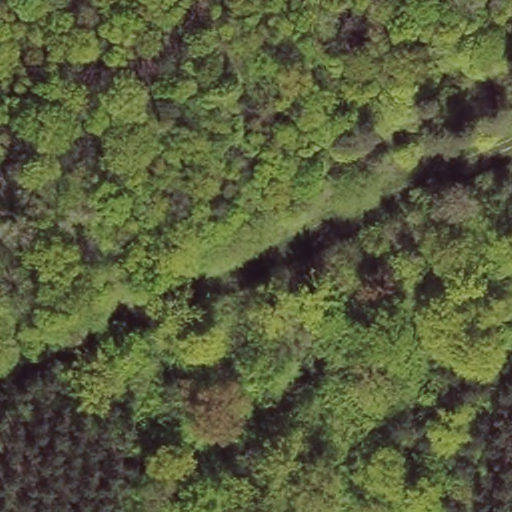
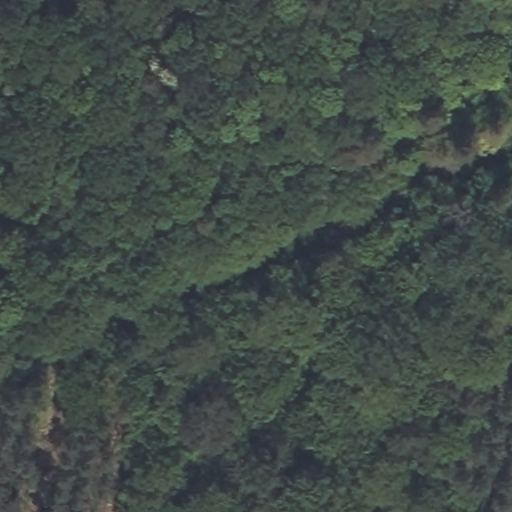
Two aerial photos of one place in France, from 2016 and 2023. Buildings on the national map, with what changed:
[]

